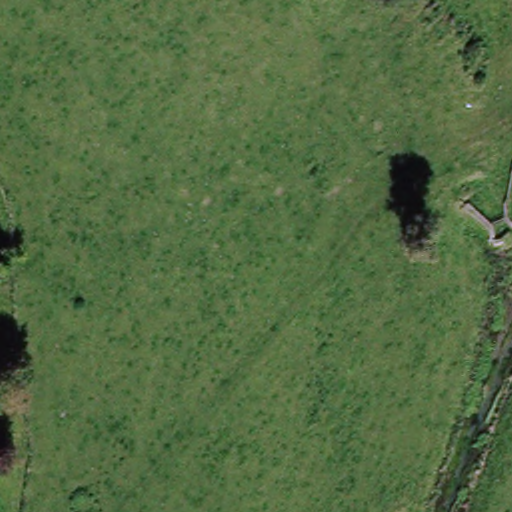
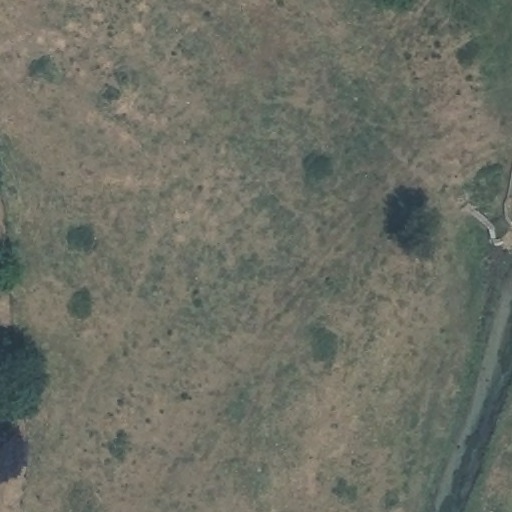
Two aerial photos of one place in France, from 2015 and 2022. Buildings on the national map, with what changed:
[]

